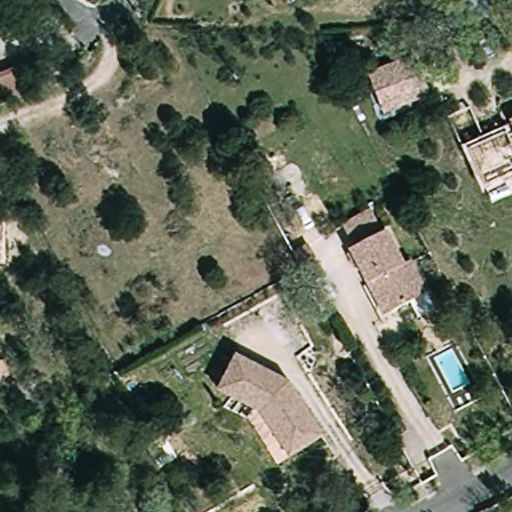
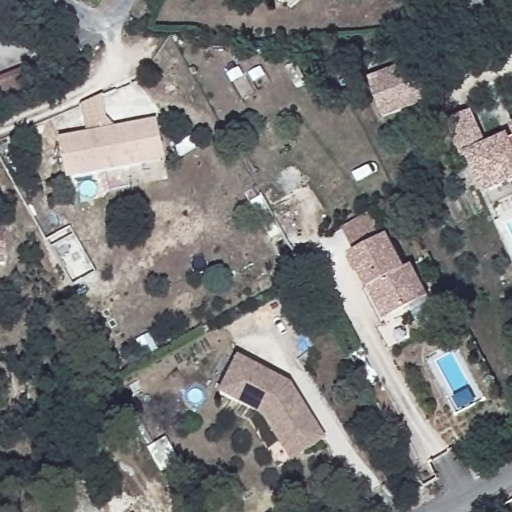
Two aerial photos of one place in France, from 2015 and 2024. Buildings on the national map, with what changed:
unchanged [(411,54),(430,90),(385,113),(367,77),(411,54)]
unchanged [(0,109),(0,83),(31,70),(42,95),(5,111),(1,112),(0,109)]
new [(66,179),(59,138),(85,134),(81,105),(102,96),(105,118),(113,127),(156,120),(164,160),(66,179)]
new [(509,132),(511,137),(512,137),(512,193),(492,202),(486,193),(468,156),(463,157),(448,120),(472,110),(486,142),(509,132)]
unchanged [(373,292),(355,258),(359,256),(348,234),(377,218),(388,241),(393,238),(410,272),(417,268),(434,301),(397,321),(390,324),(373,292)]
unchanged [(5,263),(0,263),(0,226),(7,227),(5,263)]
unchanged [(292,269),(285,255),(299,246),(311,267),(296,275),(292,269)]
unchanged [(282,446),(262,416),(221,396),(238,362),(269,377),(291,387),(327,441),(304,456),(294,462),(282,446)]
unchanged [(146,462),(136,445),(153,436),(164,457),(148,466),(146,462)]

